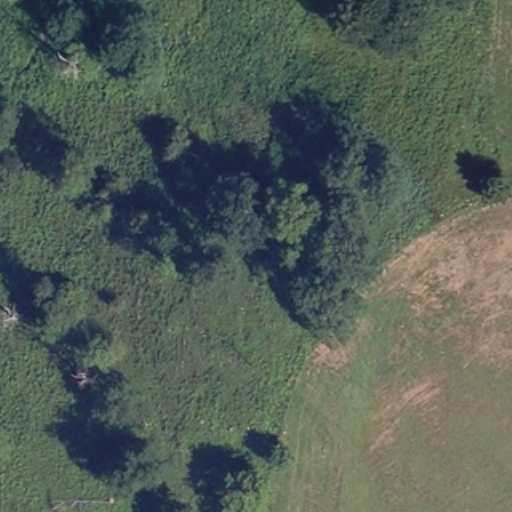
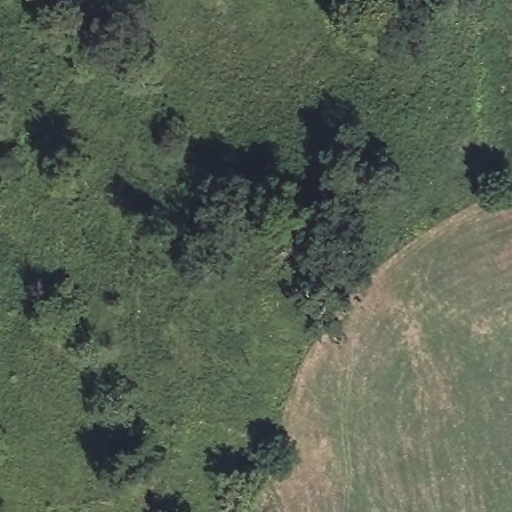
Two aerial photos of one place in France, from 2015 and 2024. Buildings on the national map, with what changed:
[]

